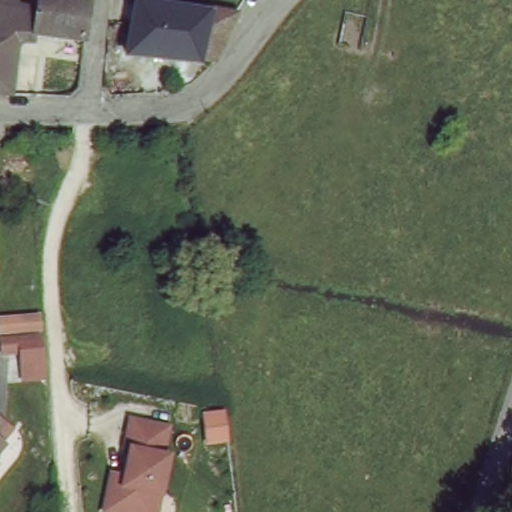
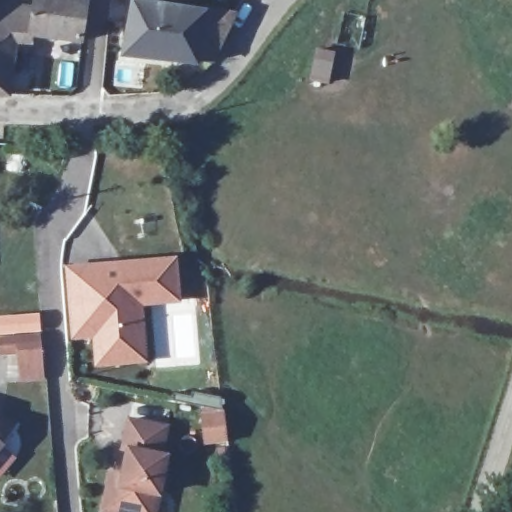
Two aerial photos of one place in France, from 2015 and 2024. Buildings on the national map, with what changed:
unchanged [(0,37),(0,0),(15,0),(12,37),(0,37)]
unchanged [(82,3),(77,39),(12,37),(15,0),(83,0),(82,3)]
unchanged [(243,10),(226,40),(222,48),(218,54),(206,50),(200,58),(131,54),(139,0),(143,0),(215,10),(215,6),(243,10)]
unchanged [(11,48),(7,95),(0,95),(0,37),(12,37),(11,48)]
new [(177,268),(178,311),(142,314),(145,373),(91,375),(90,349),(65,350),(62,275),(177,268)]
unchanged [(37,322),(0,325),(0,312),(35,309),(37,322)]
unchanged [(37,343),(0,346),(0,332),(37,329),(37,343)]
unchanged [(158,451),(168,456),(160,493),(153,493),(150,512),(119,512),(100,508),(104,484),(120,485),(127,447),(120,446),(125,416),(165,423),(158,451)]
unchanged [(0,434),(0,425),(4,428),(0,434)]
unchanged [(0,454),(0,448),(2,450),(0,454)]

